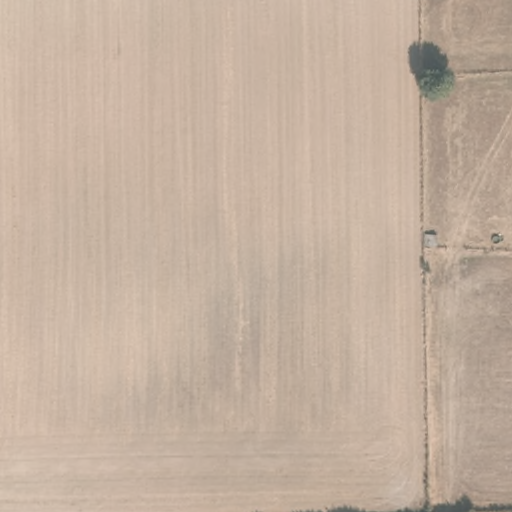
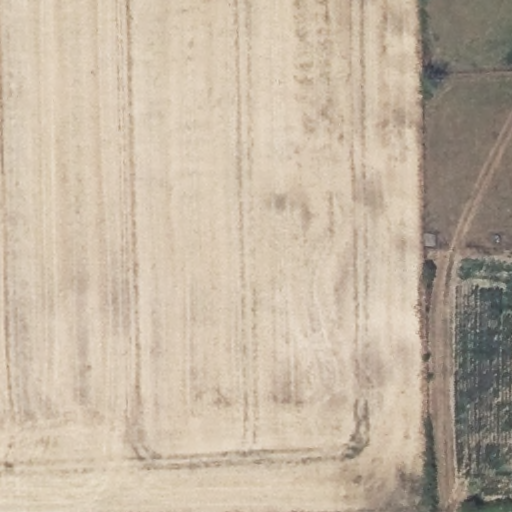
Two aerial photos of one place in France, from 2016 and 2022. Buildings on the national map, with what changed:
[]

